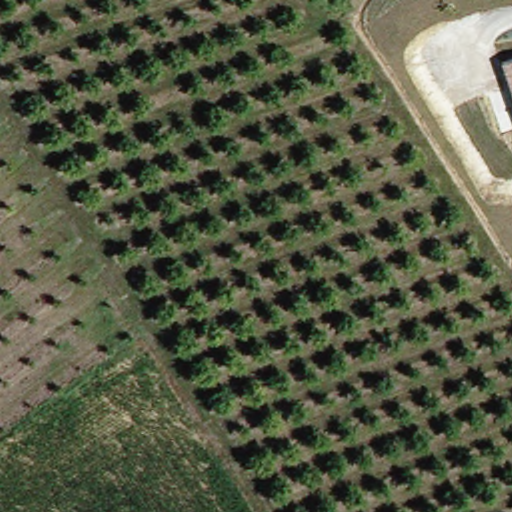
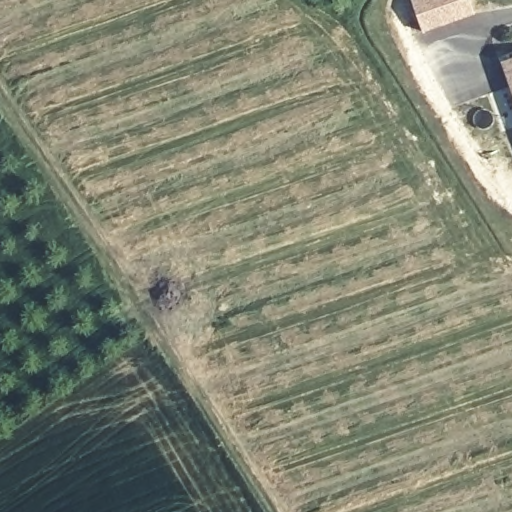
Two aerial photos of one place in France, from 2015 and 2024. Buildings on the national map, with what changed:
new [(474,15),(422,33),(410,0),(468,0),(474,15)]
unchanged [(512,63),(512,97),(501,67),(512,63)]

